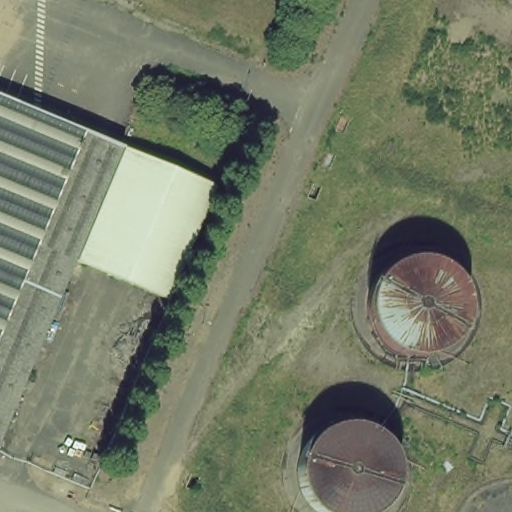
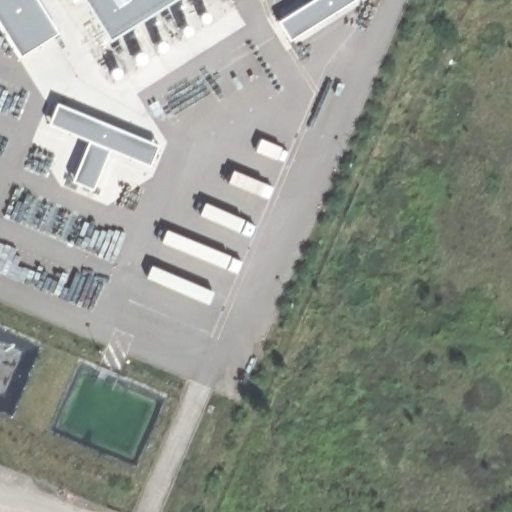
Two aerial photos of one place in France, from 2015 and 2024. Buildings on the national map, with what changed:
new [(58,33),(19,57),(0,27),(0,0),(37,0),(58,33)]
new [(108,41),(82,0),(174,0),(108,41)]
new [(312,0),(353,0),(289,40),(277,22),(312,0)]
demolished [(76,261),(0,424),(0,98),(214,183),(174,302),(76,261)]
new [(56,103),(158,145),(149,166),(109,150),(92,190),(71,181),(88,140),(48,124),(56,103)]

